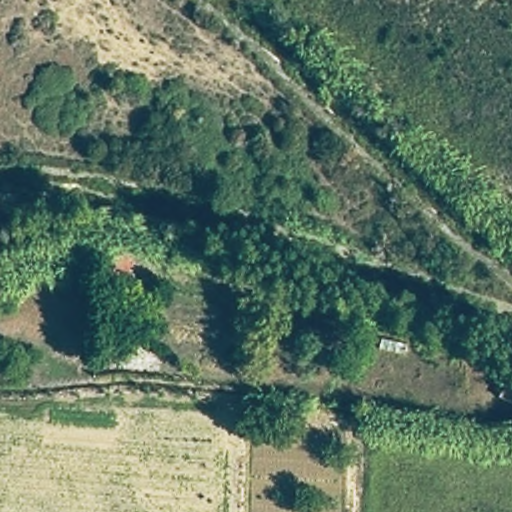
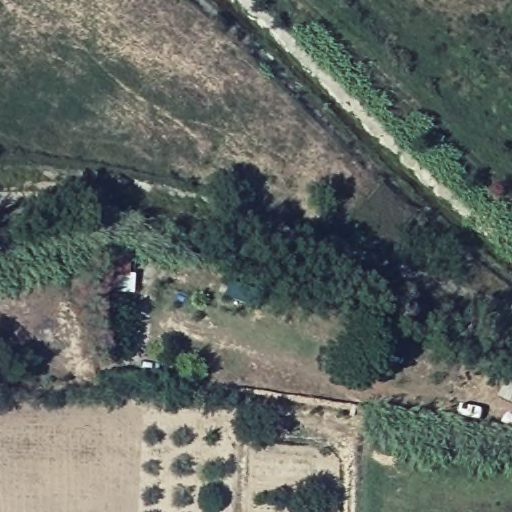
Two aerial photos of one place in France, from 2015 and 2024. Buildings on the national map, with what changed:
unchanged [(98,281),(99,258),(130,260),(130,281),(98,281)]

